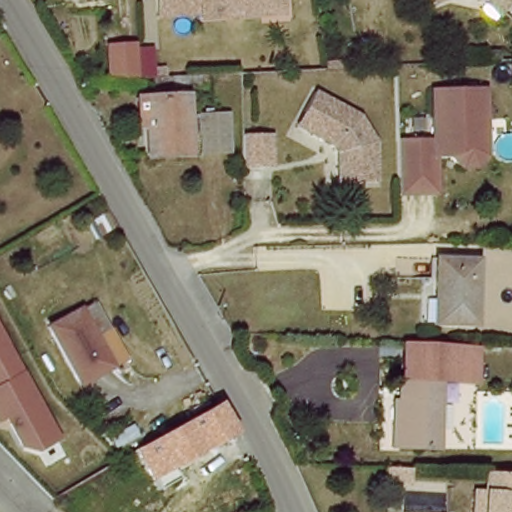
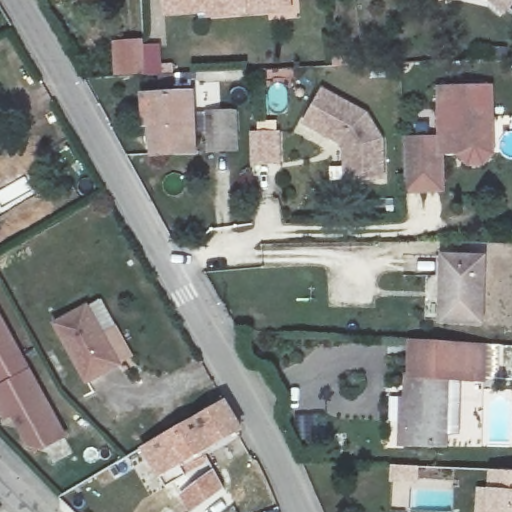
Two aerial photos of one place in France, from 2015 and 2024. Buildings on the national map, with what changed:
unchanged [(270,21),(271,13),(158,18),(158,0),(296,0),(296,20),(270,21)]
unchanged [(507,12),(494,1),(493,0),(512,0),(512,6),(507,12)]
unchanged [(113,40),(141,41),(141,46),(161,48),(161,65),(176,65),(177,85),(158,85),(157,79),(113,75),(113,40)]
unchanged [(406,140),(440,139),(440,87),(490,89),(489,156),(481,165),(463,166),(457,157),(446,156),(442,193),(404,192),(406,140)]
unchanged [(341,147),(301,124),(320,90),(362,113),(378,144),(380,180),(341,180),(341,147)]
unchanged [(151,98),(191,97),(196,155),(155,157),(151,98)]
unchanged [(240,148),(213,149),(211,108),(238,107),(240,148)]
unchanged [(248,166),(249,135),(279,134),(279,165),(248,166)]
unchanged [(444,327),(445,261),(486,262),(485,329),(444,327)]
unchanged [(98,304),(131,362),(85,389),(52,330),(98,304)]
unchanged [(46,451),(28,447),(13,417),(5,422),(0,414),(0,314),(68,437),(46,451)]
unchanged [(483,346),(481,380),(446,378),(442,449),(401,445),(403,376),(408,376),(409,341),(483,346)]
unchanged [(226,427),(170,459),(176,471),(161,480),(141,444),(213,402),(226,427)]
unchanged [(421,474),(420,489),(394,487),(394,472),(421,474)]
unchanged [(489,503),(491,478),(512,479),(512,512),(478,512),(479,503),(489,503)]

